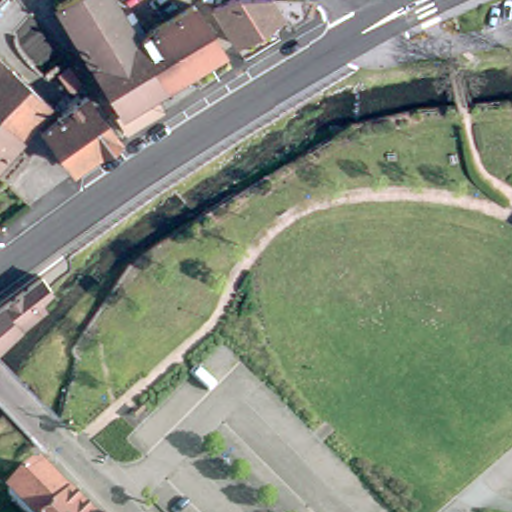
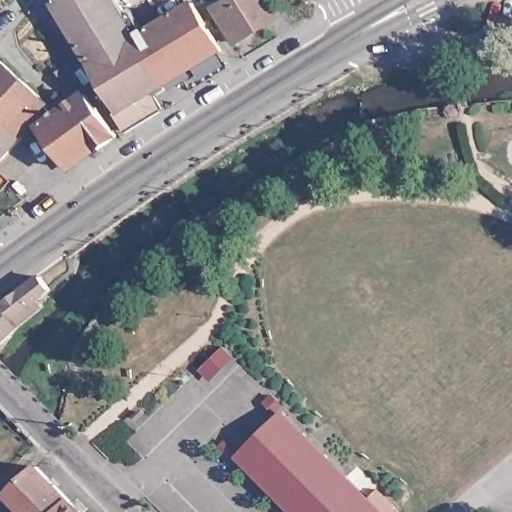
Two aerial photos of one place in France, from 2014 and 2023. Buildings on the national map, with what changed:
unchanged [(56,6),(65,0),(116,0),(139,36),(192,2),(221,51),(152,94),(164,112),(127,135),(115,117),(122,112),(56,6)]
unchanged [(212,2),(216,0),(274,0),(280,12),(235,40),(212,2)]
unchanged [(0,122),(0,62),(60,117),(87,96),(117,137),(74,170),(37,121),(20,140),(0,122)]
unchanged [(83,85),(74,92),(60,75),(70,68),(83,85)]
unchanged [(20,140),(0,161),(0,122),(20,140)]
unchanged [(41,288),(45,294),(0,334),(0,299),(43,268),(52,280),(41,288)]
new [(291,512),(240,460),(287,412),(385,512),(291,512)]
unchanged [(28,512),(10,493),(40,465),(74,500),(62,512),(28,512)]
unchanged [(86,512),(62,512),(74,500),(86,512)]

